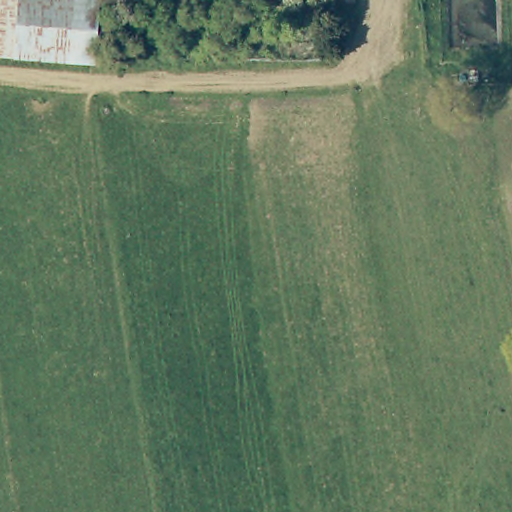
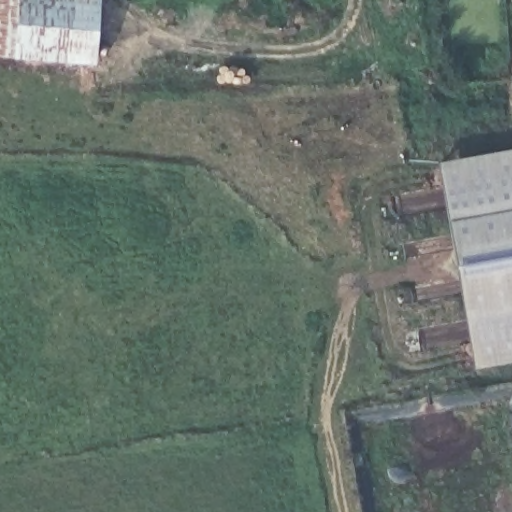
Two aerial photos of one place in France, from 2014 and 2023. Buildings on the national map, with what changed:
unchanged [(96,0),(92,51),(0,45),(0,0),(96,0)]
new [(512,360),(475,367),(463,309),(449,222),(437,163),(512,149),(512,360)]

